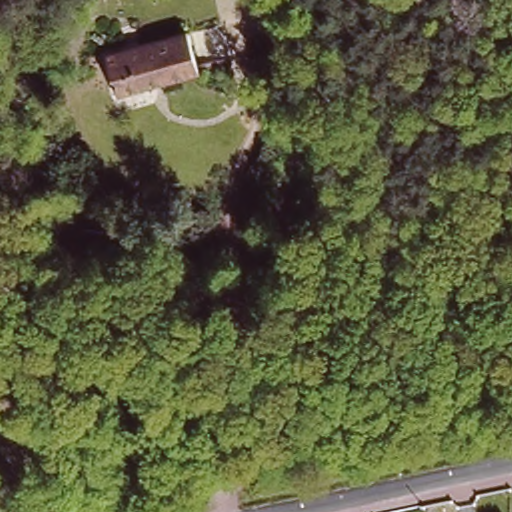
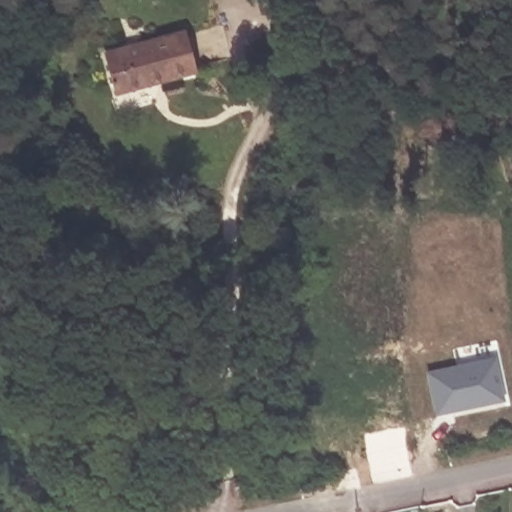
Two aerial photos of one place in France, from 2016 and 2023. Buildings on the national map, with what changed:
unchanged [(117,89),(106,50),(140,41),(188,28),(199,67),(117,89)]
new [(496,359),(504,402),(437,416),(428,374),(496,359)]

